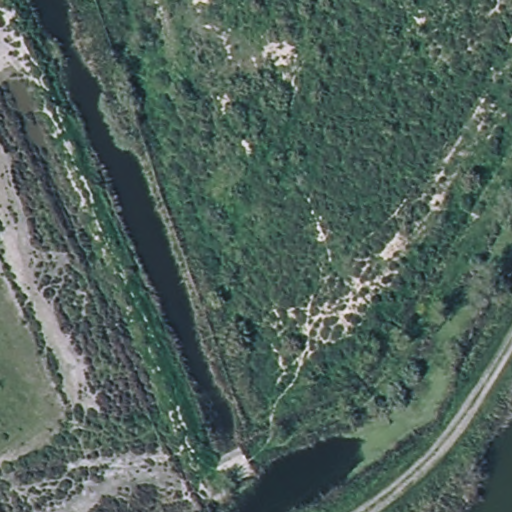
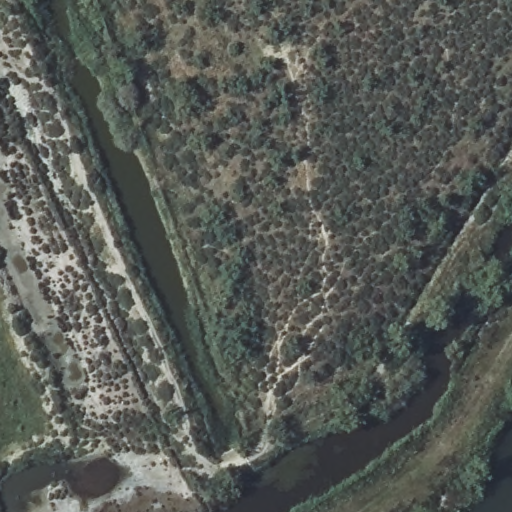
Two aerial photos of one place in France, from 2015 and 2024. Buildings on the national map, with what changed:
[]

